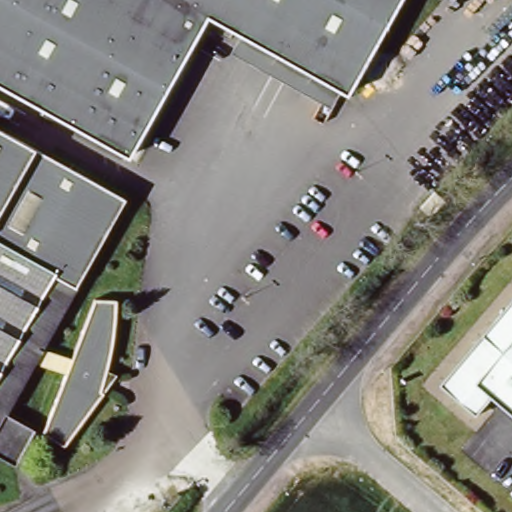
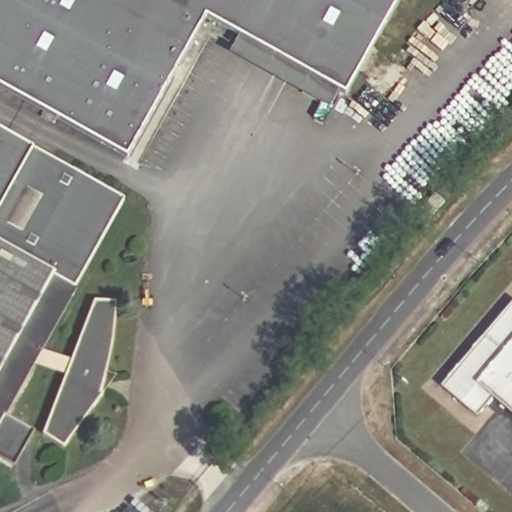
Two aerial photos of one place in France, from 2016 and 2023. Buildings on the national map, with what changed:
unchanged [(360,89),(349,82),(340,102),(240,49),(249,30),(217,11),(140,149),(0,74),(0,0),(406,0),(360,89)]
unchanged [(136,193),(87,283),(53,342),(82,354),(105,297),(129,296),(127,329),(113,392),(77,441),(53,429),(77,367),(45,358),(18,410),(43,426),(23,457),(0,445),(0,120),(136,193)]
unchanged [(484,410),(452,383),(495,333),(512,349),(512,399),(501,389),(484,410)]

